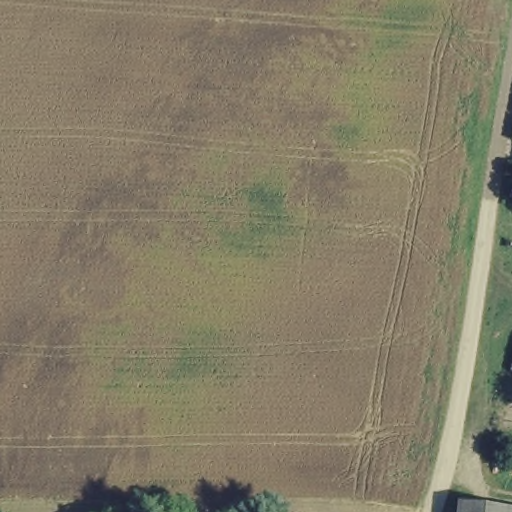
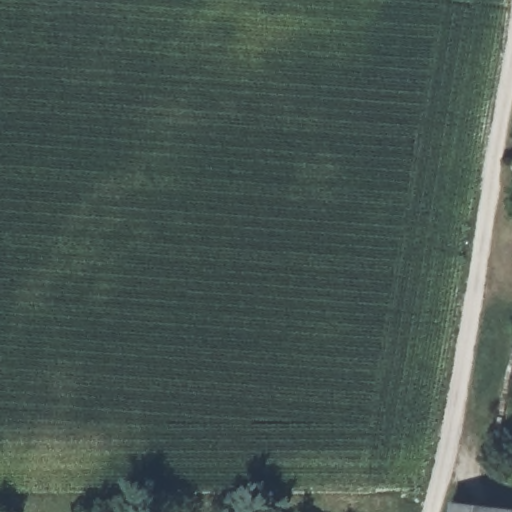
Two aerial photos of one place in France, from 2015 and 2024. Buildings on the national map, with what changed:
unchanged [(512,509),(512,512),(447,512),(448,504),(512,509)]

